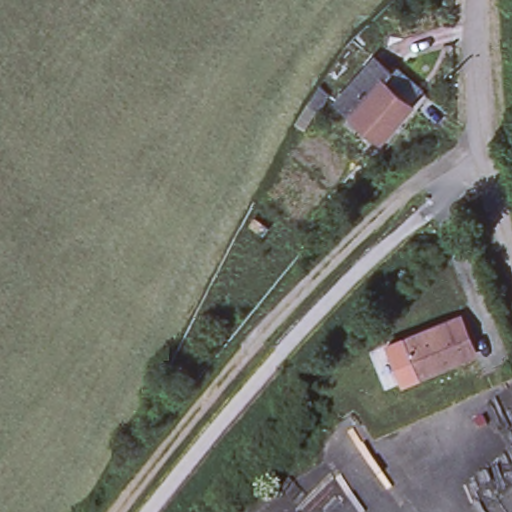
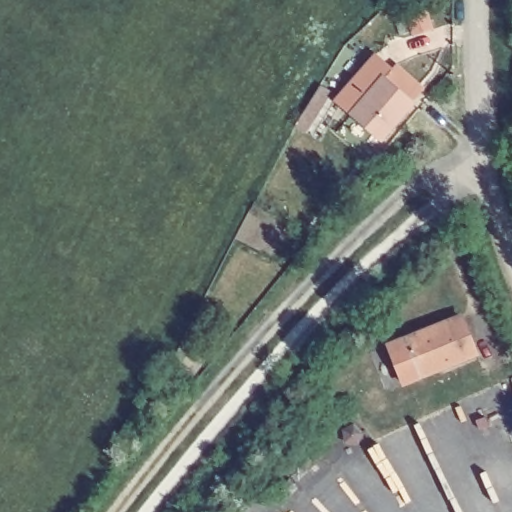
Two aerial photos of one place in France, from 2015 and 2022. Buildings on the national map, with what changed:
unchanged [(343,106),(383,63),(399,77),(391,86),(359,121),(343,106)]
unchanged [(391,86),(419,111),(386,146),(359,121),(391,86)]
unchanged [(459,315),(473,352),(418,373),(403,337),(459,315)]

